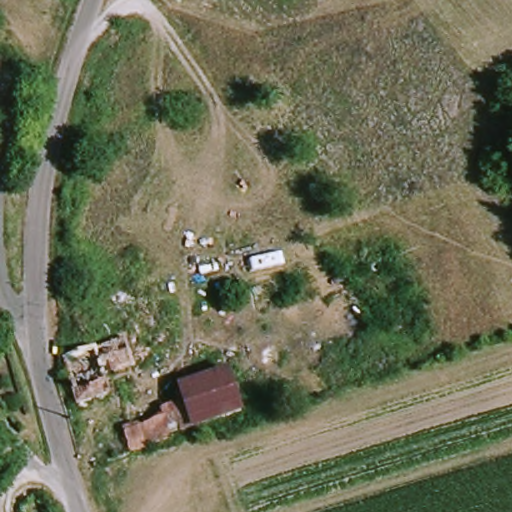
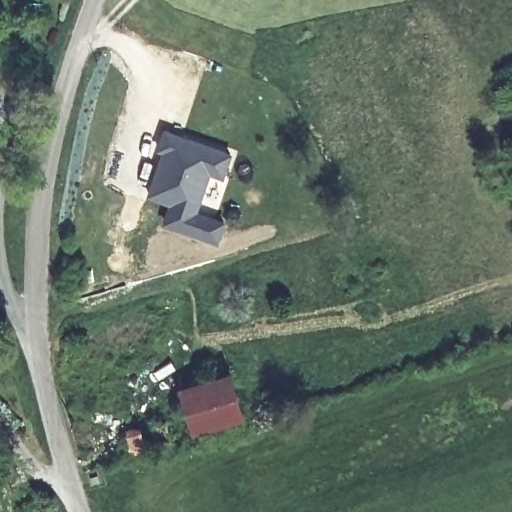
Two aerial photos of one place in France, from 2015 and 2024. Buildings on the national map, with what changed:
new [(148,195),(162,153),(155,150),(163,130),(232,153),(224,178),(210,173),(197,213),(148,195)]
unchanged [(108,382),(111,399),(79,407),(63,358),(126,341),(136,370),(108,382)]
unchanged [(242,413),(175,431),(177,441),(133,452),(129,433),(170,421),(168,414),(187,409),(183,390),(232,376),(242,413)]

